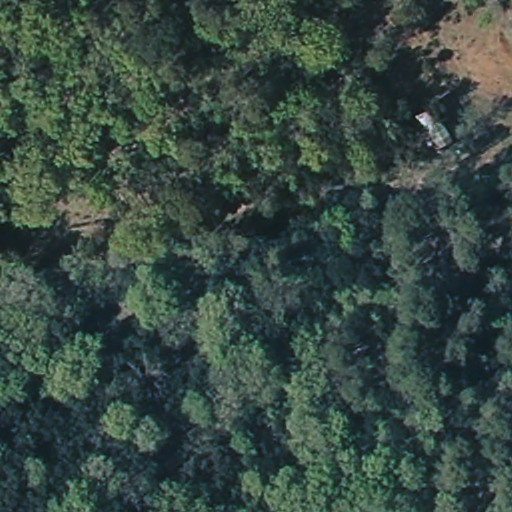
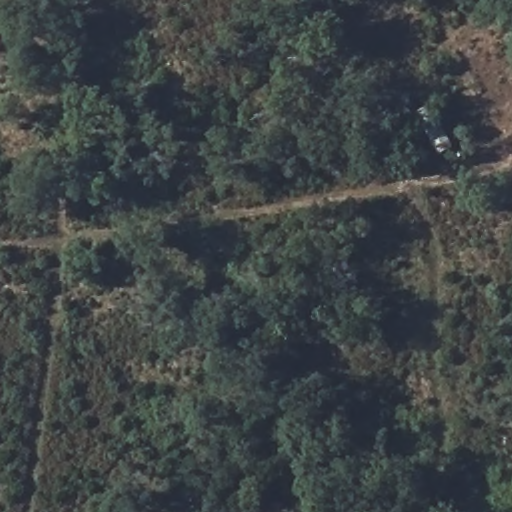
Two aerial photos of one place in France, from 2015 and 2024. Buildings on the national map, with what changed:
unchanged [(433,110),(454,153),(433,163),(416,120),(433,110)]

